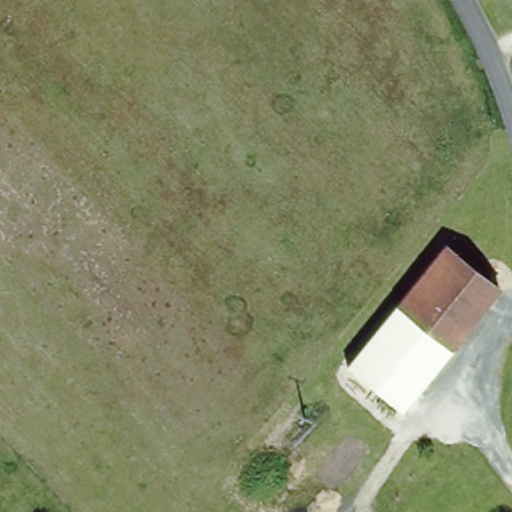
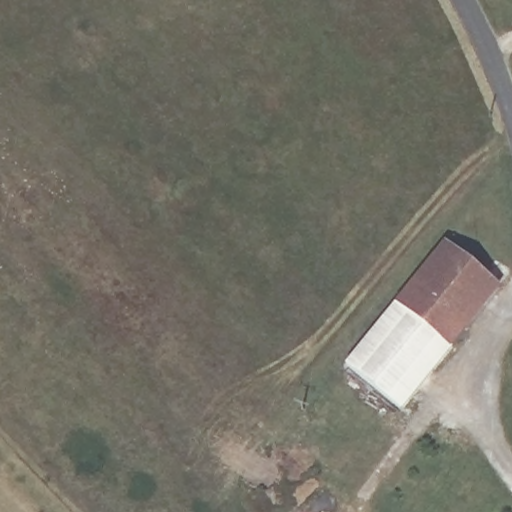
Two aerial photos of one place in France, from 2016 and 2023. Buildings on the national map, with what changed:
unchanged [(440,252),(494,295),(447,352),(394,308),(440,252)]
unchanged [(394,308),(447,352),(390,423),(336,380),(394,308)]

